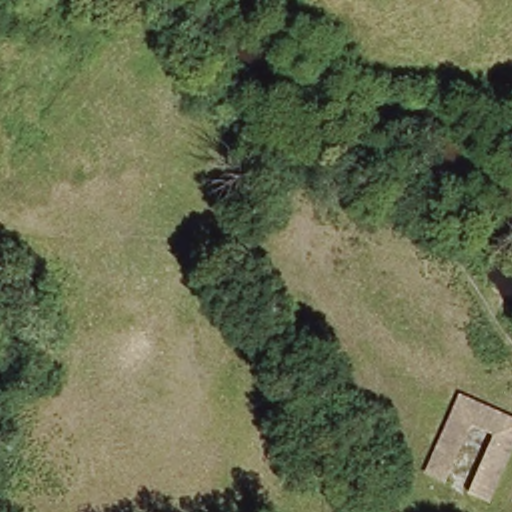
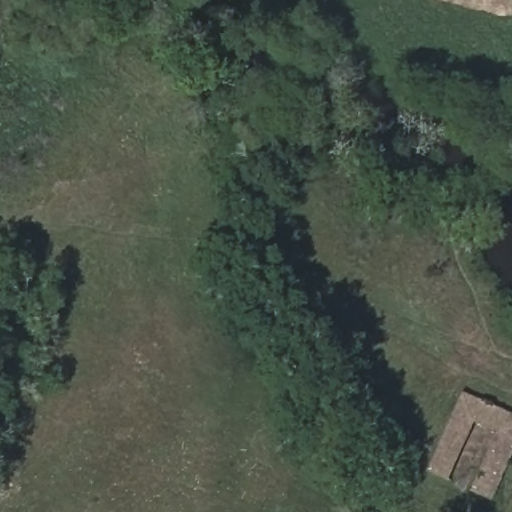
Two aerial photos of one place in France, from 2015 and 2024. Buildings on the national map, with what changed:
unchanged [(512,409),(512,458),(495,496),(476,490),(499,434),(477,422),(451,478),(428,468),(465,387),(512,409)]

